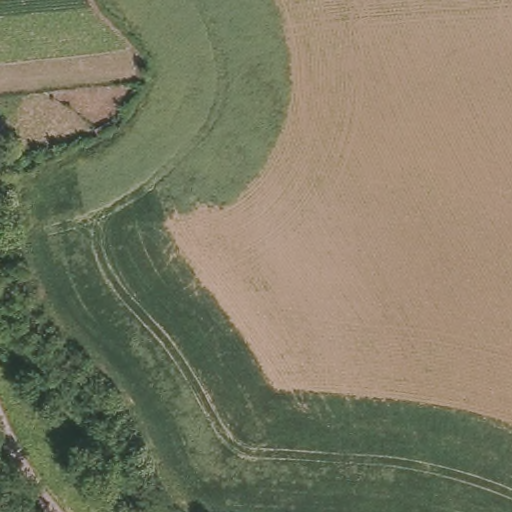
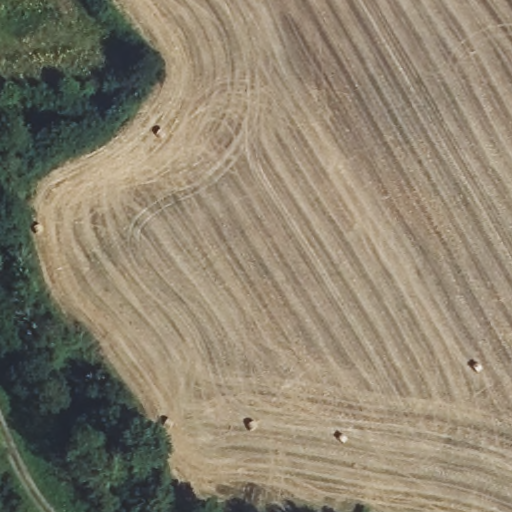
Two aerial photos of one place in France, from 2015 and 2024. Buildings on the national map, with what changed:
[]

